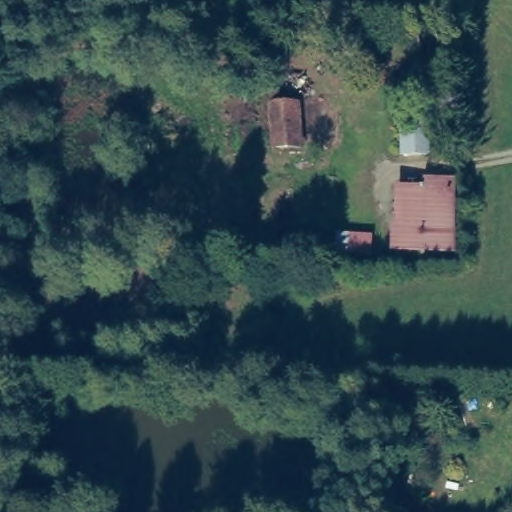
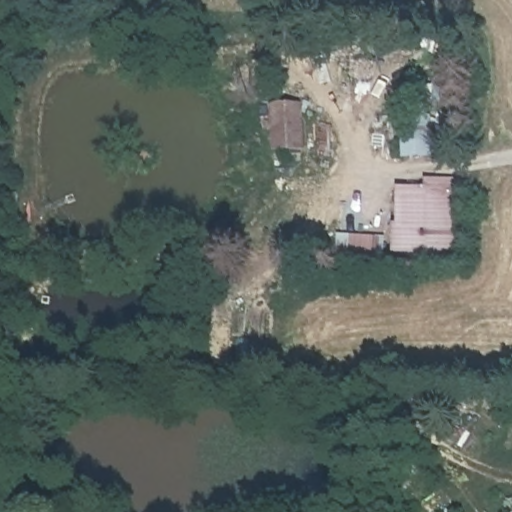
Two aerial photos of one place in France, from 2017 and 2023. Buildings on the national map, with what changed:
unchanged [(316,160),(271,159),(269,102),(316,105),(316,160)]
unchanged [(433,150),(407,150),(408,114),(433,114),(433,150)]
unchanged [(422,187),(449,189),(448,256),(398,255),(398,234),(398,197),(409,197),(422,197),(422,187)]

